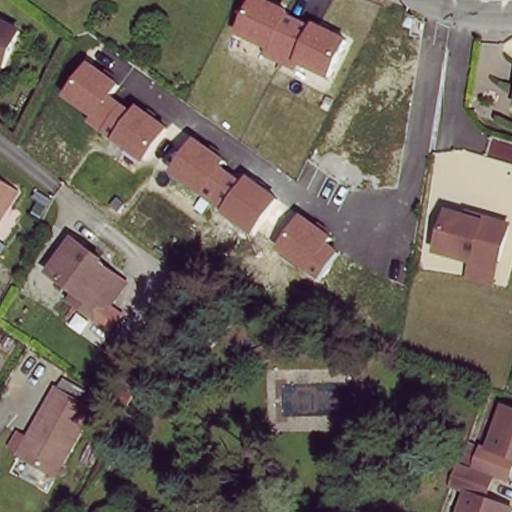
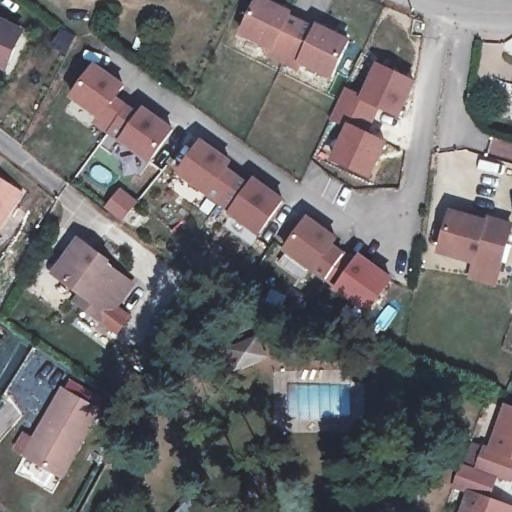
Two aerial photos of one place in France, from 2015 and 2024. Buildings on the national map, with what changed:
unchanged [(332,82),(300,67),(298,71),(266,56),(269,50),(238,36),(255,0),(267,0),(353,40),(332,82)]
unchanged [(9,73),(0,69),(0,24),(25,37),(9,73)]
new [(343,132),(329,120),(345,87),(359,98),(377,62),(416,82),(400,120),(374,107),(364,128),(389,142),(371,180),(332,160),(343,132)]
unchanged [(92,126),(96,118),(70,99),(96,64),(126,86),(117,98),(141,115),(145,108),(175,130),(151,164),(92,126)]
unchanged [(259,237),(175,176),(201,140),(231,162),(228,170),(251,185),(254,178),(285,200),(259,237)]
unchanged [(0,227),(0,178),(23,193),(0,227)]
unchanged [(339,237),(333,245),(344,253),(324,280),(284,252),(309,217),(339,237)]
unchanged [(474,266),(441,257),(451,219),(484,227),(485,223),(511,230),(501,266),(500,273),(474,266)]
unchanged [(122,330),(106,319),(105,320),(76,299),(81,291),(58,274),(84,241),(112,262),(108,269),(113,273),(115,270),(132,283),(113,308),(129,320),(122,330)]
new [(371,273),(353,300),(324,280),(344,253),(371,273)]
unchanged [(120,404),(133,383),(146,391),(136,409),(134,412),(120,404)]
unchanged [(29,458),(20,453),(28,440),(36,445),(65,395),(100,416),(65,480),(28,460),(29,458)]
unchanged [(483,445),(489,447),(503,405),(512,408),(512,465),(507,479),(493,474),(475,468),(483,445)]
unchanged [(484,498),(512,508),(510,512),(459,512),(467,492),(457,489),(466,465),(475,468),(493,474),(484,498)]

